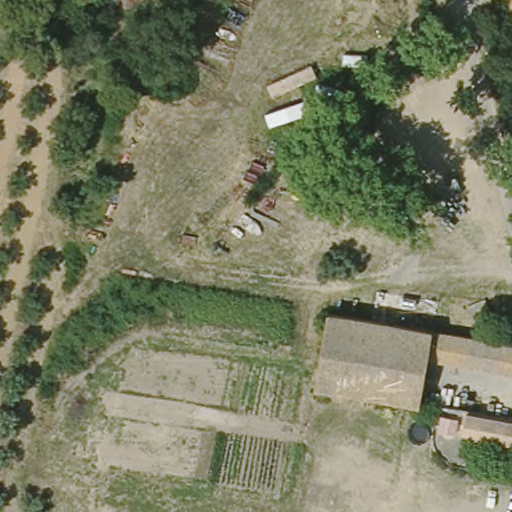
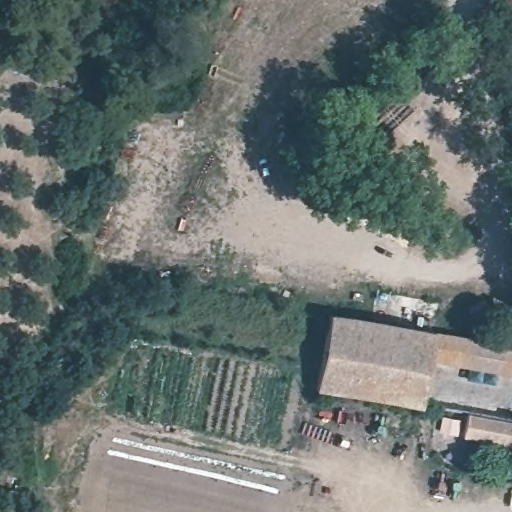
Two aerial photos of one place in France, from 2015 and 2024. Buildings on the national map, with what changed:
unchanged [(433,361),(425,407),(320,389),(332,313),(438,332),(433,361)]
unchanged [(438,332),(488,340),(512,345),(512,375),(433,361),(438,332)]
unchanged [(471,413),(512,420),(512,445),(467,437),(471,413)]

